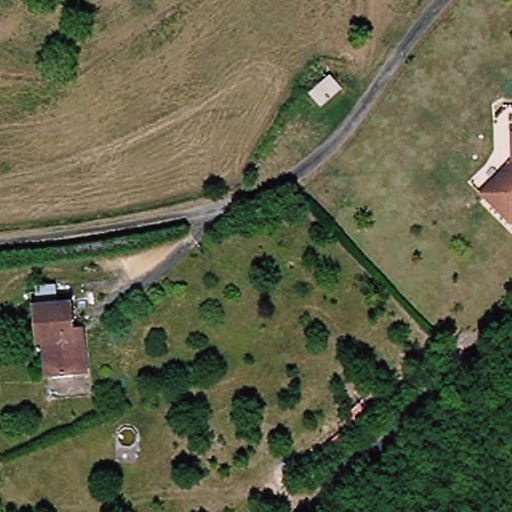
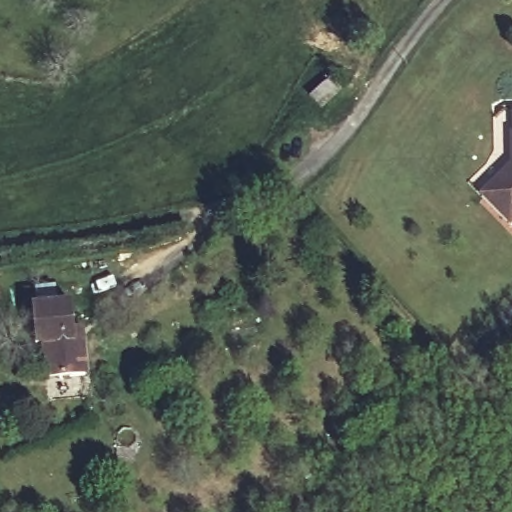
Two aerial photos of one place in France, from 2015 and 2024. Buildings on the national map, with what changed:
unchanged [(484,194),(512,169),(512,224),(484,194)]
unchanged [(37,343),(38,308),(74,310),(73,331),(80,331),(80,379),(43,378),(43,344),(37,343)]

